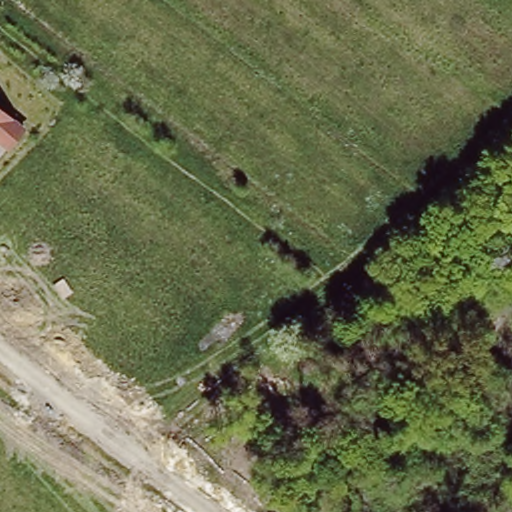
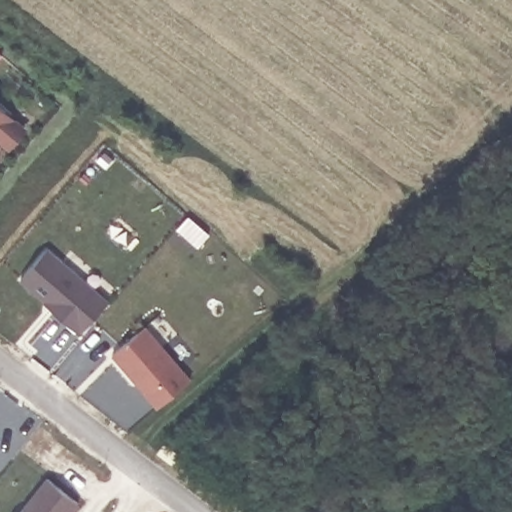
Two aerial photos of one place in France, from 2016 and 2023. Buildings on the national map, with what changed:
unchanged [(26,128),(8,150),(0,141),(0,103),(26,128)]
new [(0,160),(0,141),(8,150),(0,160)]
new [(104,151),(112,158),(105,167),(96,160),(104,151)]
new [(81,334),(45,304),(46,302),(20,281),(48,247),(109,299),(81,334)]
new [(158,409),(112,356),(146,327),(191,380),(158,409)]
new [(74,512),(21,512),(47,478),(80,504),(74,512)]

